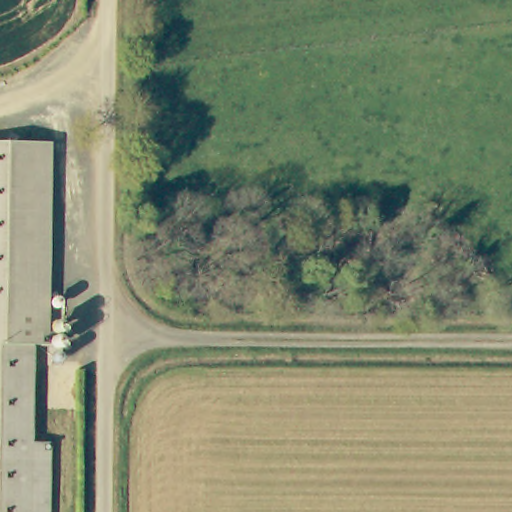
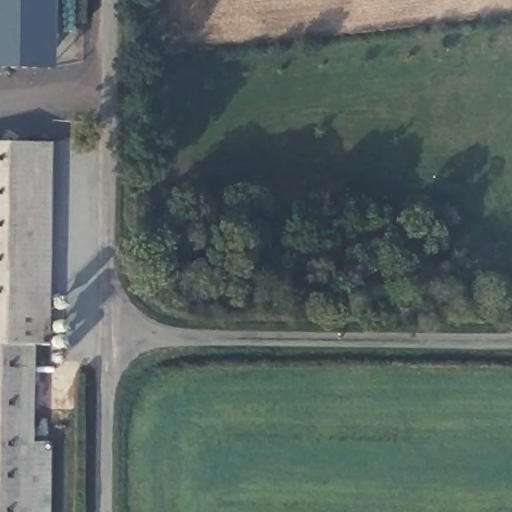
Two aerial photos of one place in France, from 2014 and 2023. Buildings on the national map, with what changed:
new [(0,69),(0,0),(52,0),(52,70),(0,69)]
unchanged [(45,346),(30,345),(0,345),(0,143),(47,144),(45,346)]
unchanged [(29,442),(29,512),(0,512),(0,345),(30,345),(29,442)]
unchanged [(29,512),(29,442),(47,442),(47,512),(29,512)]

